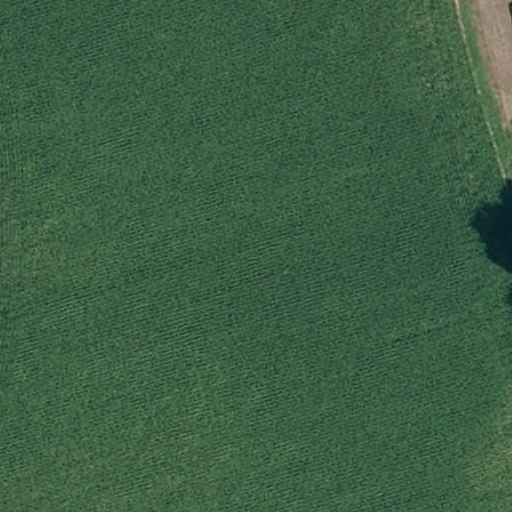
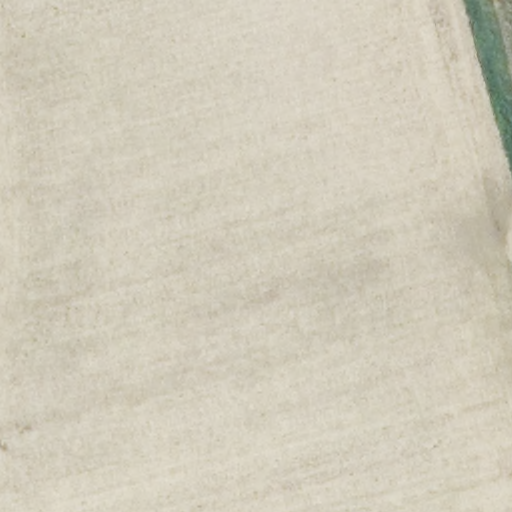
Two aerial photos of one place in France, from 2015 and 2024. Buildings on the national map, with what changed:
[]

